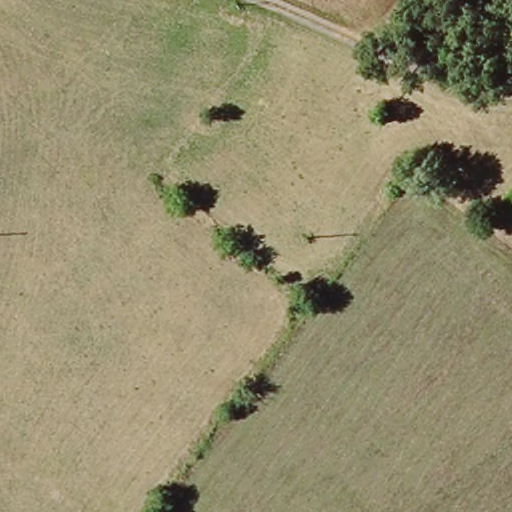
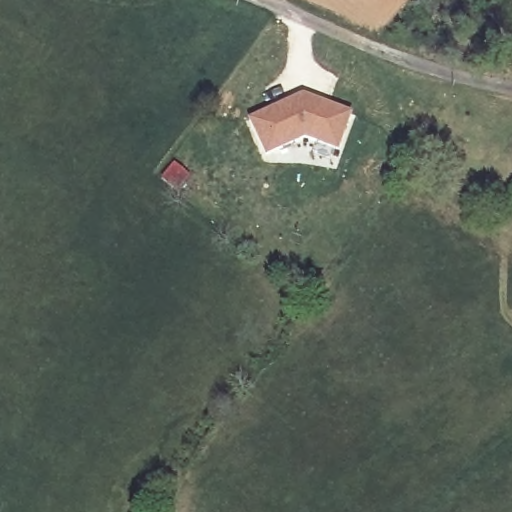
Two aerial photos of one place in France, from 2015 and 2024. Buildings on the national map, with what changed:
new [(304,90),(352,111),(338,150),(305,137),(284,148),(264,156),(247,118),(304,90)]

